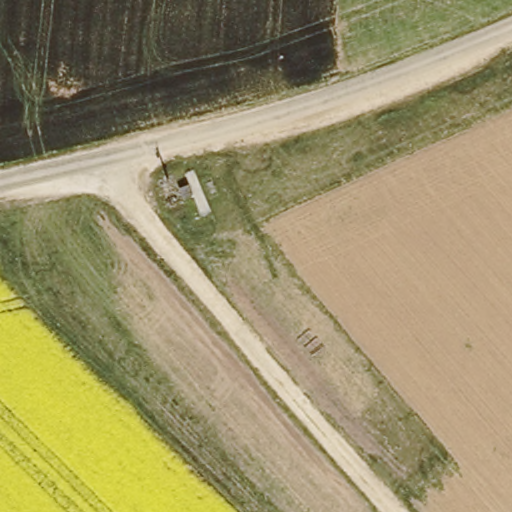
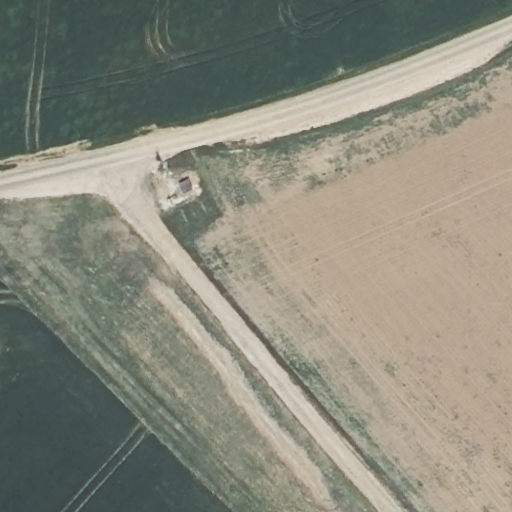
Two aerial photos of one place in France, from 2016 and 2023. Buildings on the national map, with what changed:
unchanged [(188,185),(191,194),(181,197),(178,187),(188,185)]

